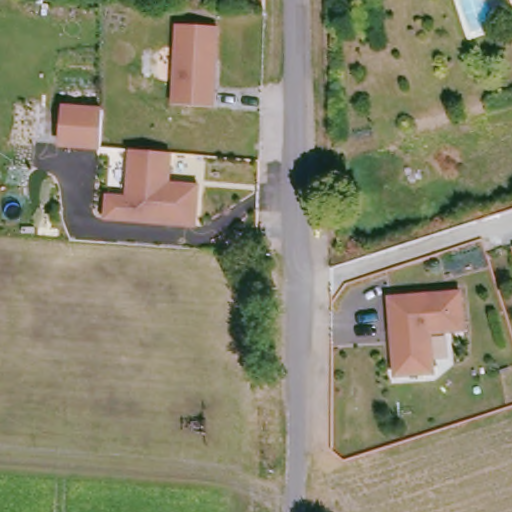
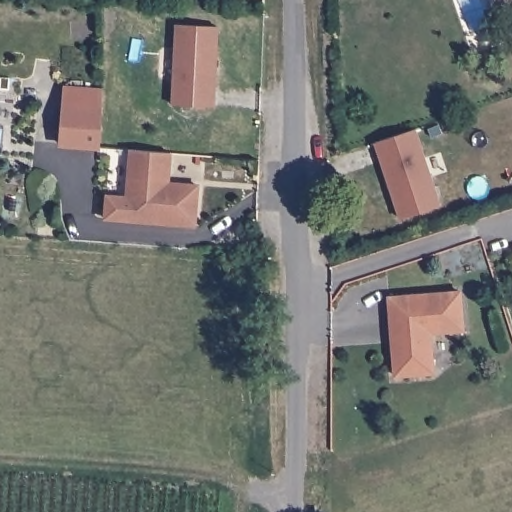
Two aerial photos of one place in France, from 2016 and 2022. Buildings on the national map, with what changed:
unchanged [(175,22),(218,23),(214,104),(170,101),(175,22)]
unchanged [(59,144),(67,84),(104,87),(98,147),(59,144)]
new [(399,220),(374,144),(416,130),(440,205),(399,220)]
unchanged [(104,217),(106,191),(125,195),(127,147),(171,150),(169,180),(198,182),(195,225),(104,217)]
unchanged [(395,377),(395,368),(390,300),(463,295),(465,332),(431,335),(434,367),(435,375),(395,377)]

